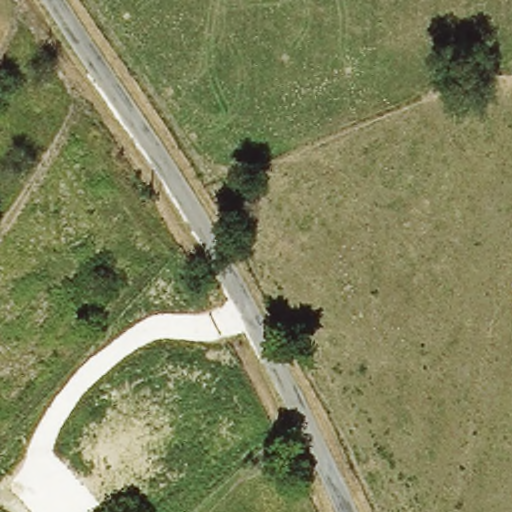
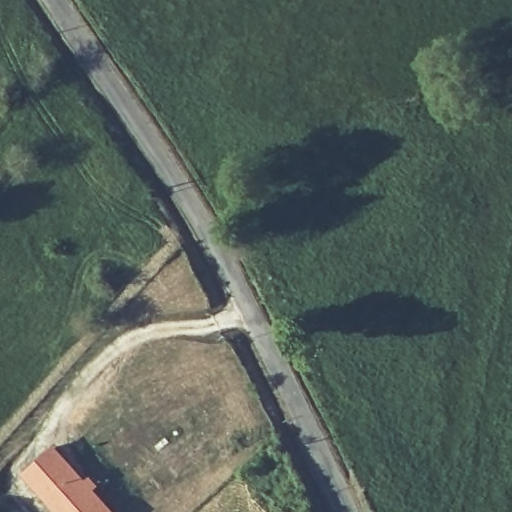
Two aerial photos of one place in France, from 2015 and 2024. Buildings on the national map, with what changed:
new [(53,443),(88,478),(118,512),(56,512),(21,473),(53,443)]

